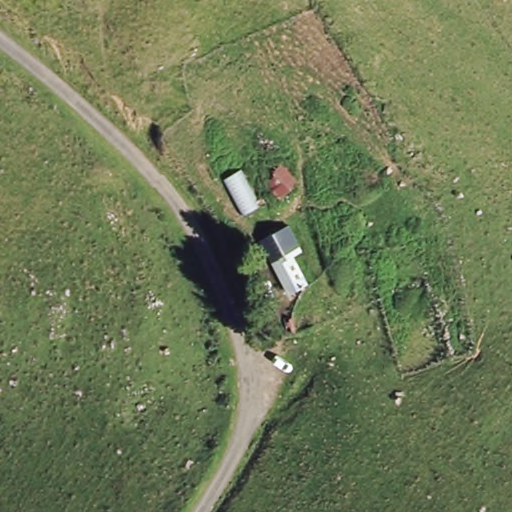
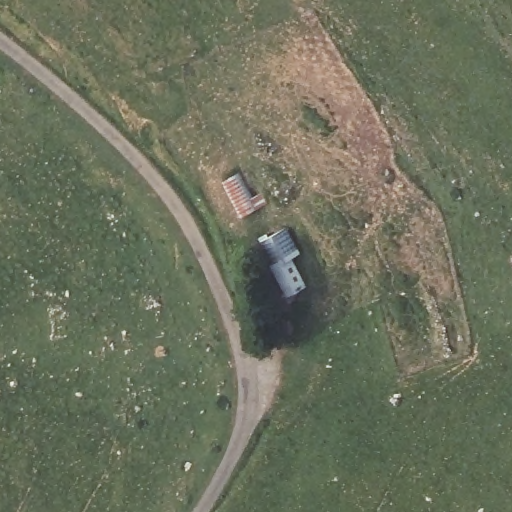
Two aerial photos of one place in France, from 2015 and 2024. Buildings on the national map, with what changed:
unchanged [(261,211),(245,219),(226,186),(242,177),(261,211)]
unchanged [(289,220),(301,247),(294,253),(307,283),(285,294),(267,256),(281,251),(271,229),(289,220)]
unchanged [(282,315),(289,313),(291,323),(283,324),(282,315)]

